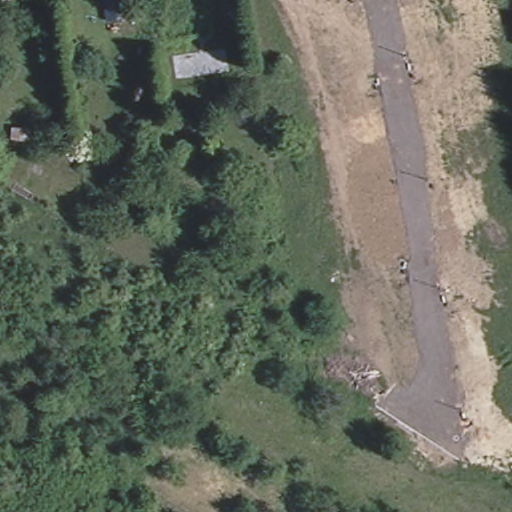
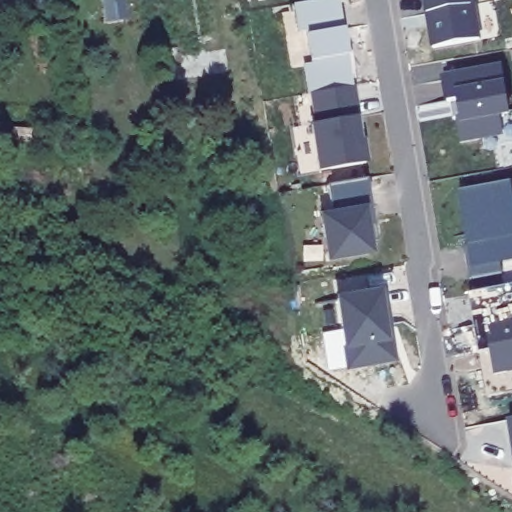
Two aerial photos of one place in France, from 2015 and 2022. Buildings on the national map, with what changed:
new [(310,92),(305,66),(291,69),(281,12),(288,11),(286,4),(293,2),(294,5),(320,0),(337,0),(350,86),(310,92)]
new [(475,1),(481,39),(430,49),(423,15),(425,14),(422,0),(473,0),(475,1)]
new [(506,84),(511,117),(501,119),(503,137),(460,144),(456,129),(458,128),(456,120),(460,117),(456,99),(445,102),(440,75),(504,67),(506,84)]
new [(310,123),(315,122),(310,92),(350,86),(355,117),(353,118),(356,140),(360,140),(363,162),(318,170),(318,169),(303,172),(296,127),(310,124),(310,123)]
new [(377,239),(371,238),(375,254),(326,261),(318,212),(332,211),(327,184),(366,177),(377,239)]
new [(512,264),(500,265),(502,275),(470,280),(464,246),(467,245),(457,191),(511,183),(512,186),(512,264)]
new [(490,350),(479,353),(468,293),(512,286),(512,373),(494,377),(490,350)]
new [(397,361),(346,370),(345,367),(327,370),(322,333),(339,328),(334,297),(380,288),(386,290),(397,361)]
new [(512,418),(512,457),(506,419),(512,418)]

